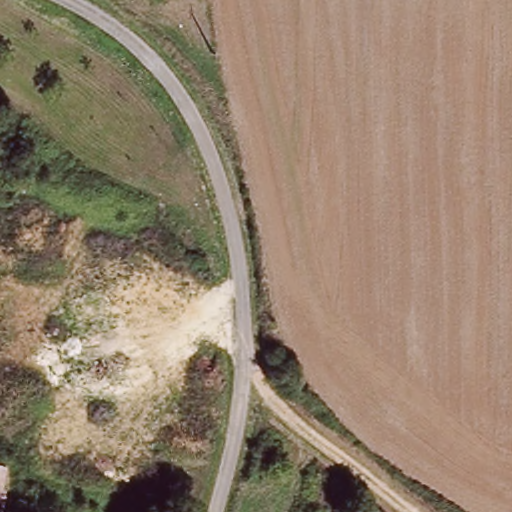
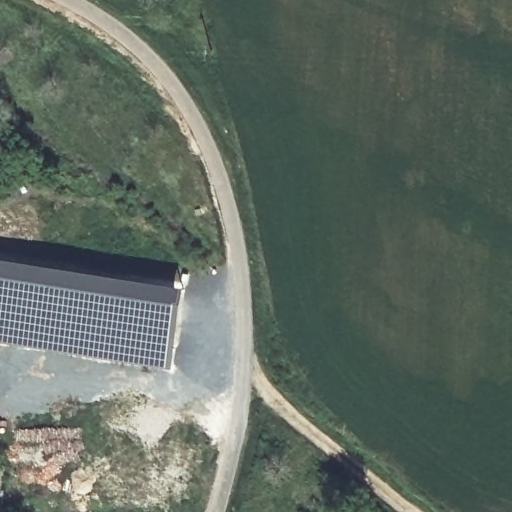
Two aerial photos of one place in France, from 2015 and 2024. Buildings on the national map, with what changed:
new [(188,286),(177,347),(0,316),(0,254),(188,286)]
new [(177,347),(175,365),(0,336),(0,316),(177,347)]
unchanged [(15,512),(0,512),(1,504),(0,504),(0,477),(15,478),(15,512)]

